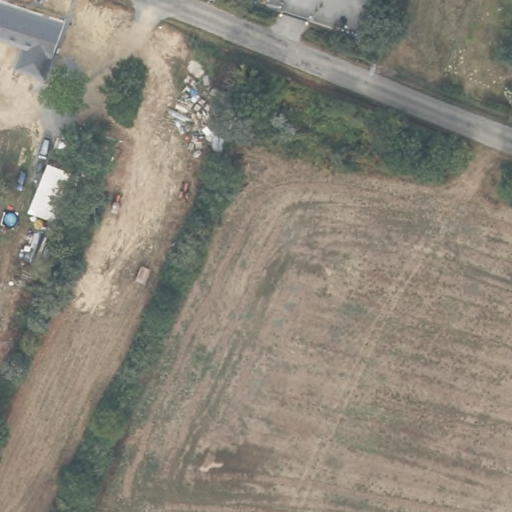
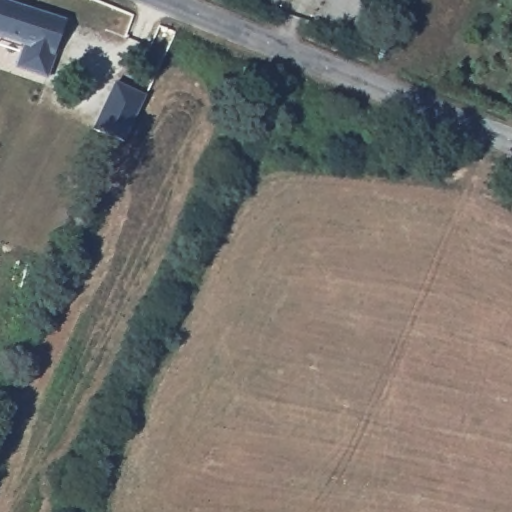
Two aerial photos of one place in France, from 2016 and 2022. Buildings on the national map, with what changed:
unchanged [(0,43),(0,3),(24,10),(26,1),(47,7),(44,17),(49,18),(38,55),(0,43)]
new [(146,94),(123,142),(90,128),(114,79),(146,94)]

